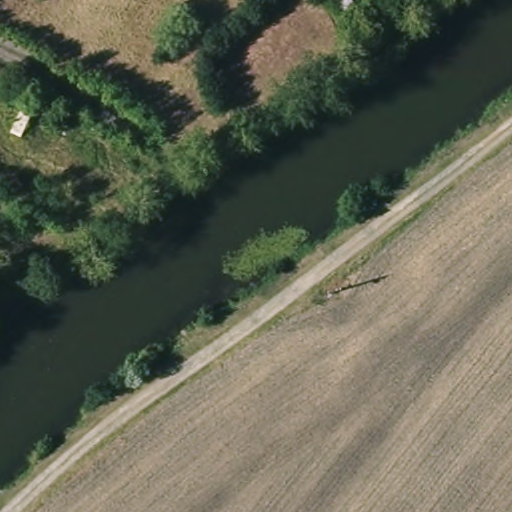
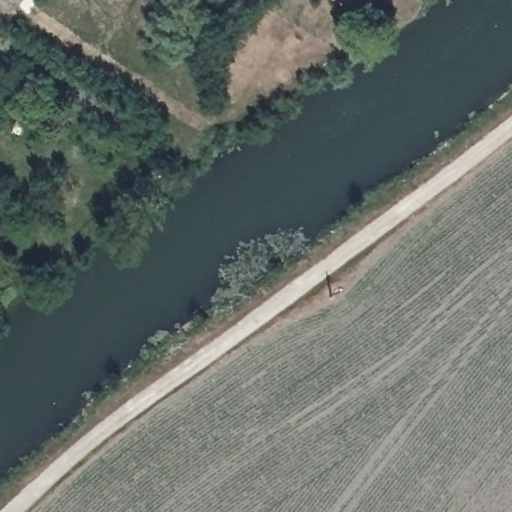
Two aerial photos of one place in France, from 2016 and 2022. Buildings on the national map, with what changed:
unchanged [(346,2),(349,0),(383,0),(358,19),(346,2)]

